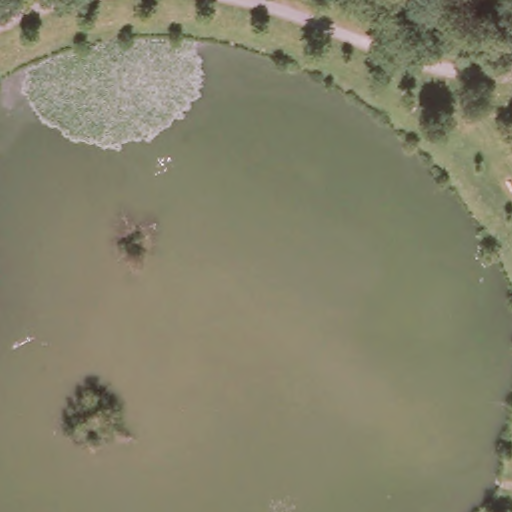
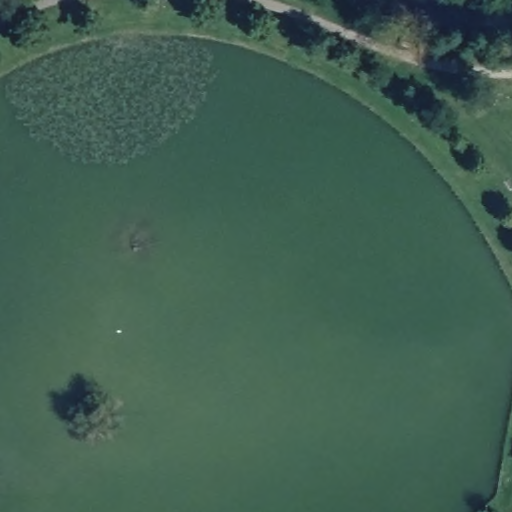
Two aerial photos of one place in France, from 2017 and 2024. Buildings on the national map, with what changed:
[]

